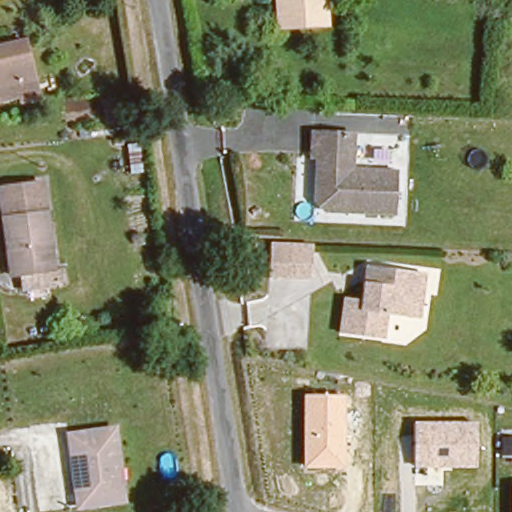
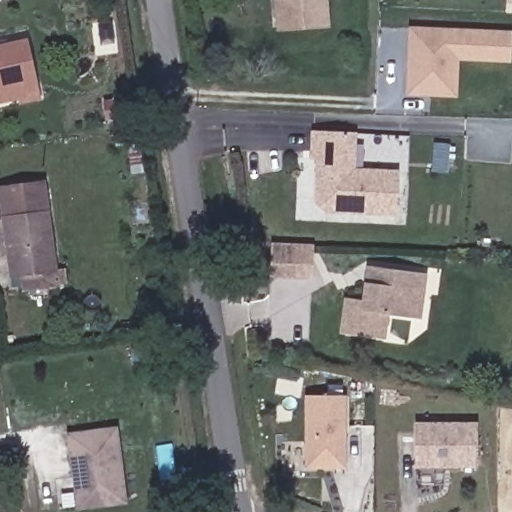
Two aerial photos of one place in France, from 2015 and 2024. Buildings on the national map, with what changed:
unchanged [(274,25),(273,0),(322,0),(322,25),(274,25)]
new [(506,0),(512,0),(512,12),(505,12),(506,0)]
new [(458,60),(457,97),(404,95),(408,25),(510,30),(509,62),(458,60)]
unchanged [(35,84),(0,91),(0,49),(28,44),(35,84)]
unchanged [(353,134),(353,171),(397,172),(395,213),(344,210),(344,205),(316,204),(316,167),(313,167),(312,132),(353,134)]
unchanged [(50,277),(8,281),(0,224),(0,190),(39,187),(50,277)]
unchanged [(311,277),(271,277),(274,247),(313,249),(311,277)]
unchanged [(416,270),(413,289),(411,313),(381,311),(376,332),(334,326),(339,291),(357,293),(359,278),(361,263),(374,265),(402,268),(416,270)]
unchanged [(304,468),(304,395),(344,395),(345,468),(304,468)]
unchanged [(477,422),(477,467),(413,468),(414,422),(477,422)]
unchanged [(117,498),(77,501),(76,481),(67,482),(64,434),(108,427),(117,498)]

